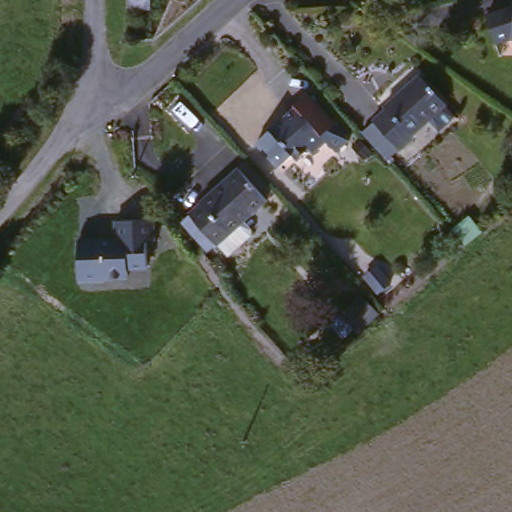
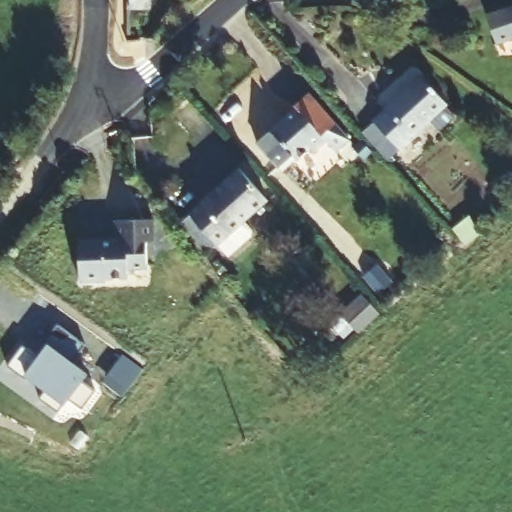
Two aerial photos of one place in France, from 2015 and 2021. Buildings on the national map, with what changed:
unchanged [(499,47),(489,21),(512,14),(512,42),(499,47)]
unchanged [(369,127),(381,117),(393,106),(390,104),(424,74),(455,108),(421,137),(423,140),(411,150),(399,160),(369,127)]
unchanged [(308,97),(338,129),(326,140),(331,146),(318,157),(313,151),(300,162),(294,156),(281,168),(258,143),(297,109),(296,107),(308,97)]
unchanged [(236,253),(223,240),(216,247),(187,218),(194,211),(194,210),(208,197),(206,194),(239,163),(271,196),(249,216),(261,229),(236,253)]
unchanged [(149,267),(128,269),(127,283),(82,285),(81,240),(113,239),(114,221),(148,221),(149,267)]
unchanged [(387,309),(366,326),(345,301),(366,284),(387,309)]
new [(72,362),(88,375),(83,383),(93,394),(83,407),(70,397),(64,404),(58,413),(41,399),(46,392),(25,376),(8,367),(24,345),(39,355),(46,344),(57,326),(84,345),(72,362)]

